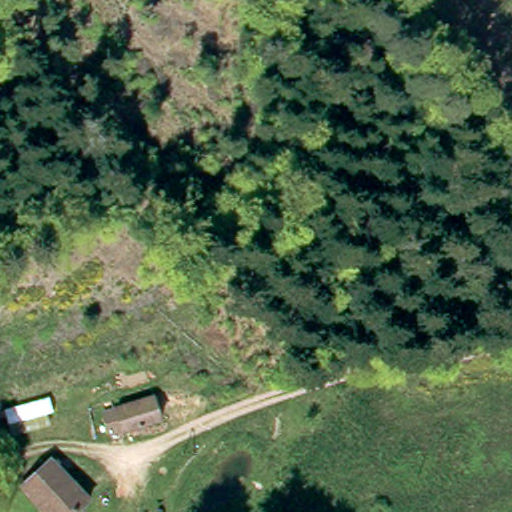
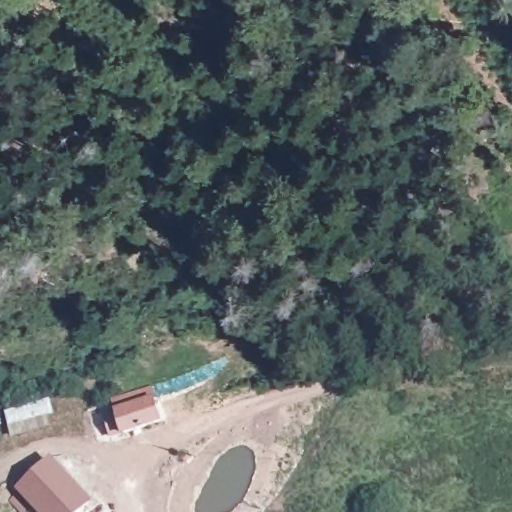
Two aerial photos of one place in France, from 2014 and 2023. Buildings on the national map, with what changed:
unchanged [(111,416),(122,414),(121,399),(158,394),(162,422),(112,431),(111,416)]
unchanged [(27,510),(22,506),(47,483),(54,482),(88,512),(29,512),(27,510)]

